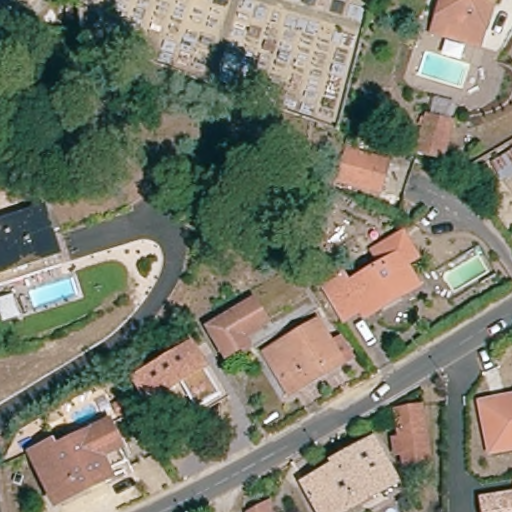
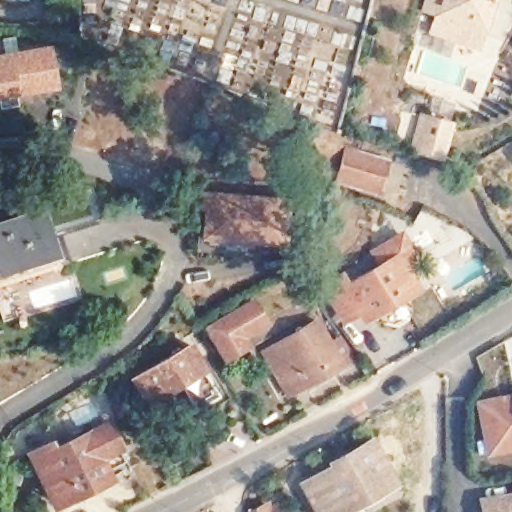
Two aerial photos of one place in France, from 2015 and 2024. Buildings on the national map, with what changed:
unchanged [(479,48),(432,33),(441,0),(493,0),(479,48)]
new [(0,53),(53,43),(61,88),(0,100),(0,53)]
unchanged [(415,156),(426,119),(450,126),(440,163),(415,156)]
unchanged [(492,166),(512,152),(512,175),(502,182),(492,166)]
unchanged [(357,157),(397,170),(388,199),(348,186),(357,157)]
new [(203,199),(283,202),(281,242),(206,239),(206,219),(207,219),(208,212),(203,212),(203,199)]
unchanged [(66,261),(0,282),(0,222),(48,207),(66,261)]
unchanged [(364,314),(360,306),(344,315),(325,281),(341,272),(346,282),(379,262),(371,248),(388,238),(401,231),(414,254),(402,262),(415,284),(399,293),(380,305),(364,314)]
unchanged [(264,333),(241,347),(246,356),(225,368),(209,339),(243,318),(239,310),(248,305),(264,333)]
unchanged [(318,333),(341,374),(288,405),(265,363),(318,333)]
unchanged [(192,341),(209,368),(229,397),(205,411),(201,404),(194,408),(181,385),(145,405),(131,378),(192,341)]
unchanged [(512,397),(512,449),(490,453),(481,403),(512,397)]
unchanged [(427,461),(404,465),(402,453),(395,454),(393,440),(400,439),(397,411),(421,408),(427,461)]
unchanged [(107,463),(119,488),(61,512),(51,512),(23,460),(53,437),(57,444),(111,422),(126,455),(107,463)]
unchanged [(332,467),(330,464),(372,440),(396,482),(358,504),(363,512),(321,512),(304,483),(332,467)]
unchanged [(505,500),(503,485),(512,483),(512,512),(469,512),(468,506),(505,500)]
unchanged [(268,512),(259,512),(268,508),(268,512)]

